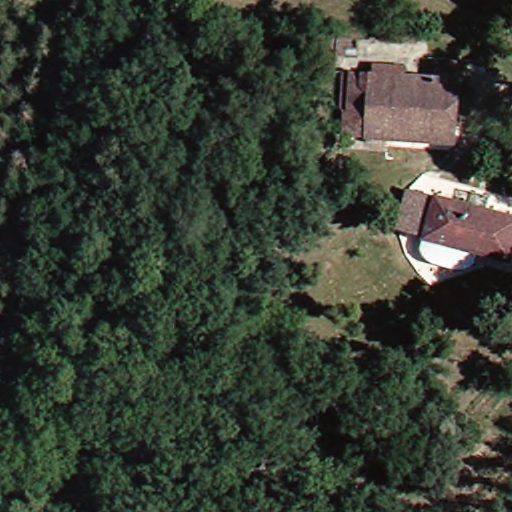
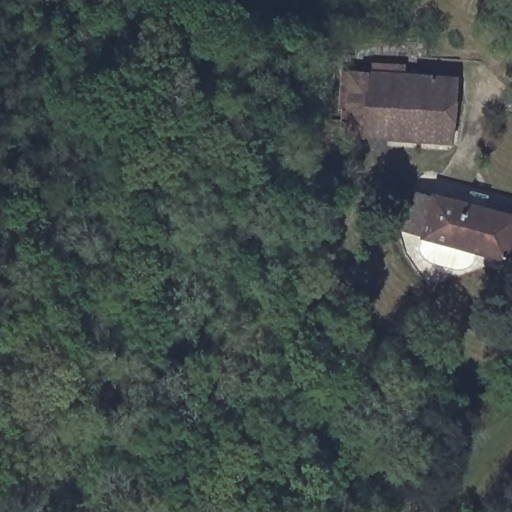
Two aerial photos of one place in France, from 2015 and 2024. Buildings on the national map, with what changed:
unchanged [(458,82),(445,142),(338,127),(345,68),(458,82)]
unchanged [(433,238),(407,233),(416,191),(442,197),(433,238)]
unchanged [(512,215),(512,257),(511,260),(433,238),(442,197),(512,215)]

